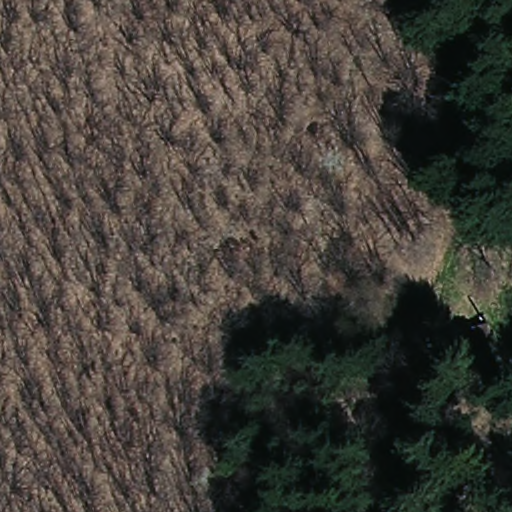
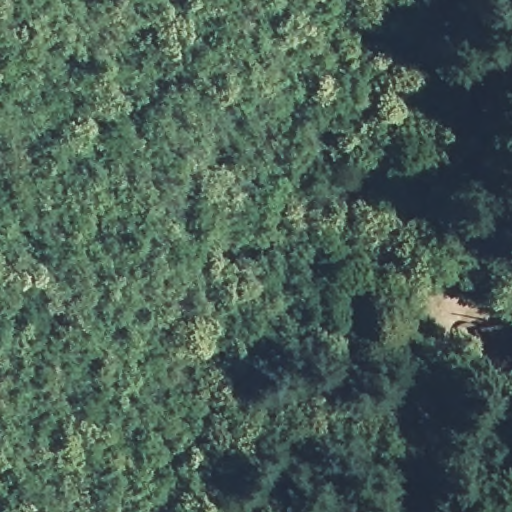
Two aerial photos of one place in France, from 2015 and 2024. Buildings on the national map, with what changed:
unchanged [(437,347),(459,343),(461,356),(438,359),(437,347)]
unchanged [(490,375),(497,367),(512,368),(512,382),(510,387),(505,389),(495,389),(490,384),(490,375)]

